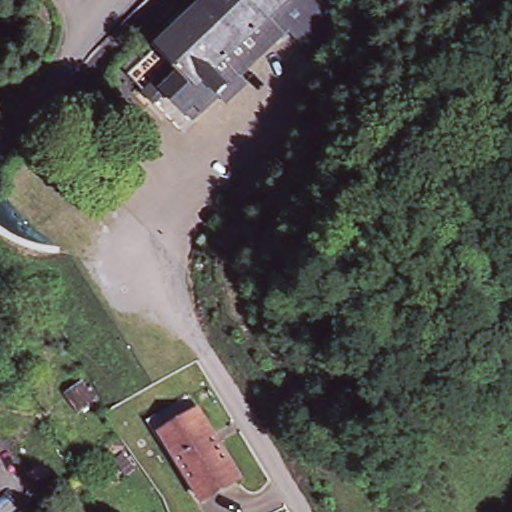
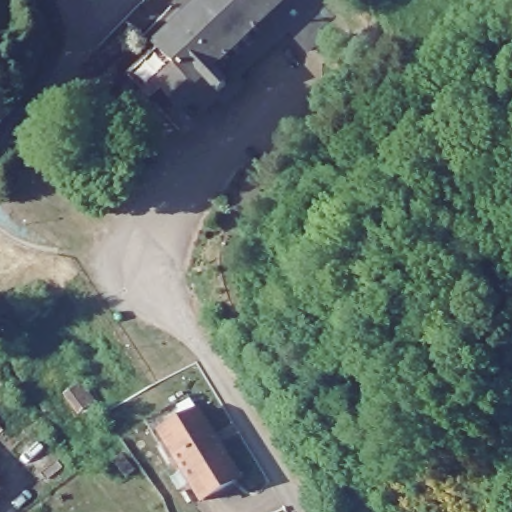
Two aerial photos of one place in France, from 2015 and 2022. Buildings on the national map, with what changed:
unchanged [(125,75),(131,69),(153,48),(203,0),(328,0),(336,9),(320,24),(326,30),(311,44),(291,24),(188,120),(159,90),(148,100),(130,80),(125,75)]
unchanged [(198,417),(235,478),(198,501),(160,439),(198,417)]

